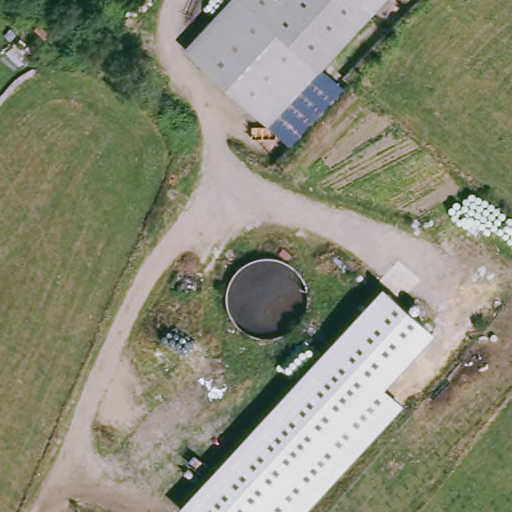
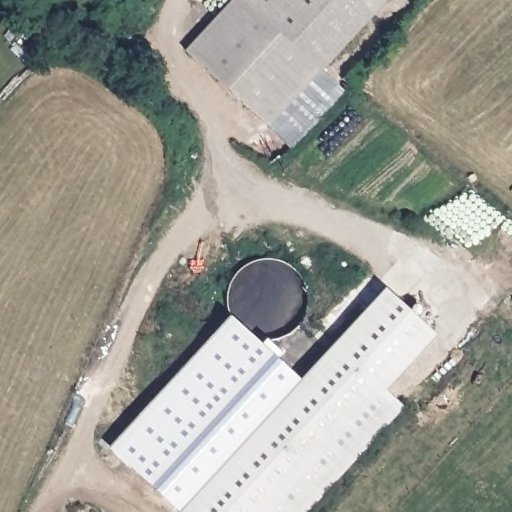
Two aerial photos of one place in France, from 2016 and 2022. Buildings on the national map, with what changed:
unchanged [(437,333),(387,390),(407,407),(311,512),(181,512),(385,287),(437,333)]
new [(181,512),(112,448),(230,314),(300,381),(181,512)]

